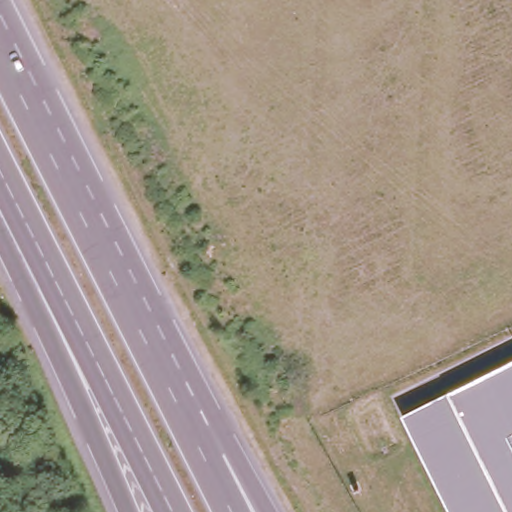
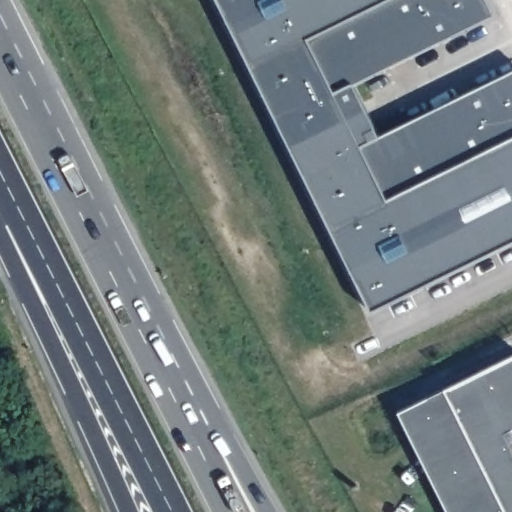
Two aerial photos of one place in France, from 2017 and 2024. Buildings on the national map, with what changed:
new [(498,15),(356,84),(381,135),(512,71),(512,243),(373,311),(221,0),(491,0),(498,15)]
unchanged [(512,512),(453,512),(403,412),(512,360),(512,512)]

